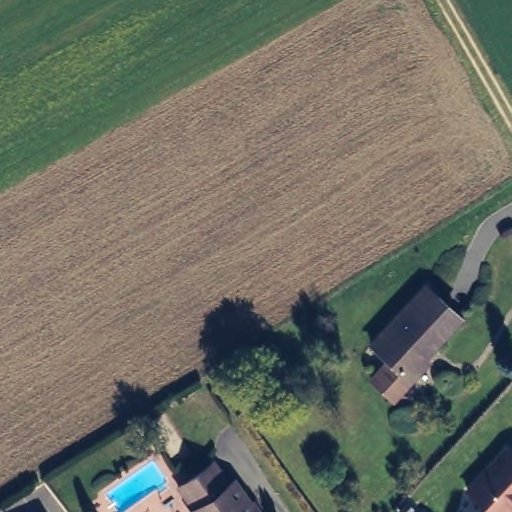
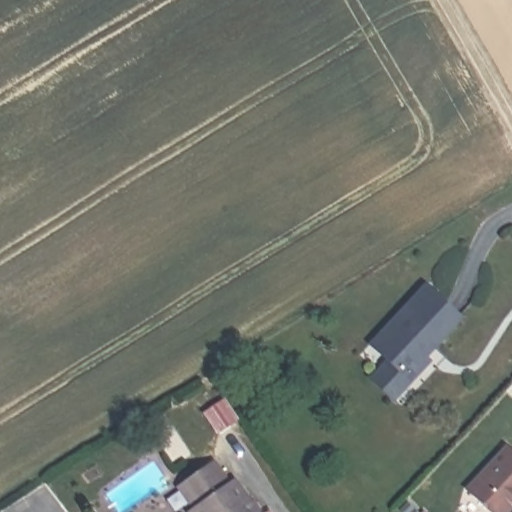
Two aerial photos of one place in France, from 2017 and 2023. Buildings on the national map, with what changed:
unchanged [(423,286),(456,317),(430,346),(423,341),(414,350),(425,362),(407,381),(368,344),(423,286)]
unchanged [(511,512),(491,512),(465,488),(505,447),(512,453),(512,511),(511,512)]
unchanged [(175,488),(184,483),(210,465),(225,487),(233,483),(253,512),(191,512),(175,488)]

